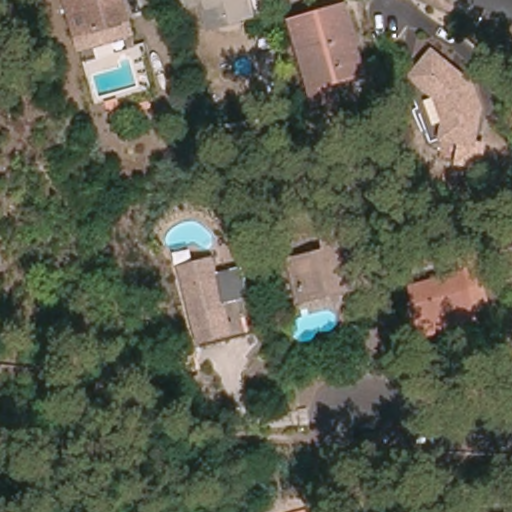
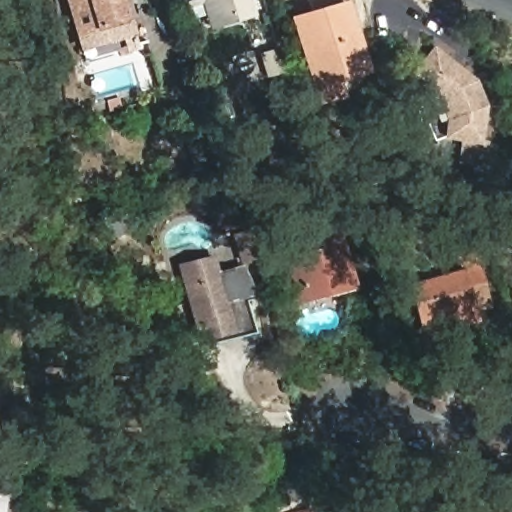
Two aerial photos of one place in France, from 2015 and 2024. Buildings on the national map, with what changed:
unchanged [(117,25),(76,36),(66,0),(121,0),(127,22),(117,25)]
unchanged [(210,16),(207,4),(194,8),(192,0),(252,0),(255,9),(257,19),(215,30),(210,16)]
unchanged [(309,81),(290,17),(317,9),(342,2),(346,16),(361,66),(309,81)]
unchanged [(432,55),(471,84),(480,107),(474,143),(443,137),(443,115),(438,99),(430,90),(414,78),(432,55)]
unchanged [(284,60),(290,82),(275,86),(269,64),(284,60)]
unchanged [(322,253),(318,234),(338,229),(355,287),(300,303),(288,262),(322,253)]
unchanged [(202,343),(199,331),(180,268),(214,259),(220,277),(240,272),(247,296),(222,303),(228,322),(231,335),(202,343)]
unchanged [(413,335),(412,325),(408,288),(466,280),(463,265),(481,263),(488,315),(472,318),(473,328),(413,335)]

